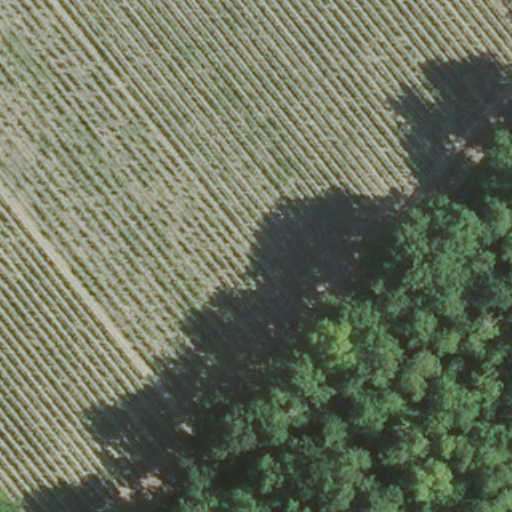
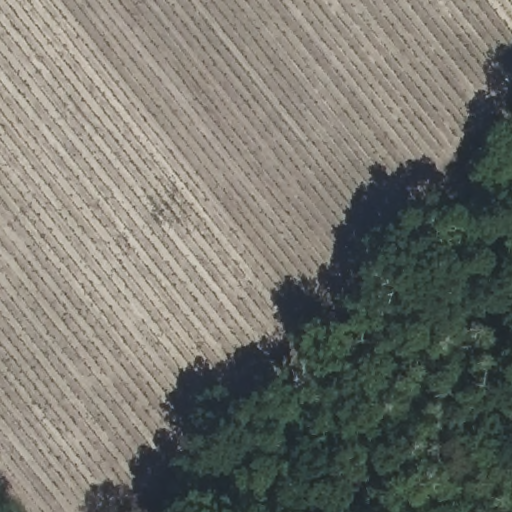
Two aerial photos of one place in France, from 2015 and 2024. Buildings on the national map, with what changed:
[]

